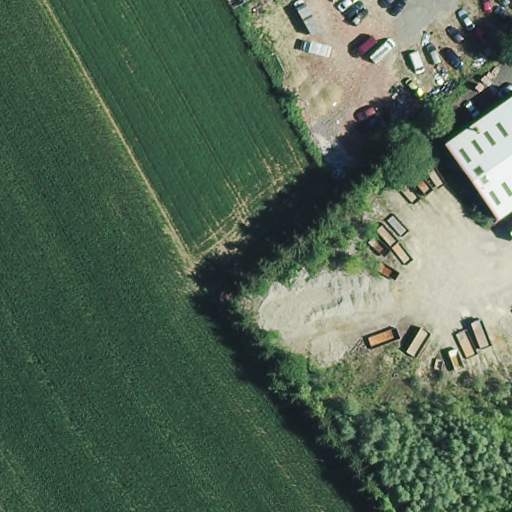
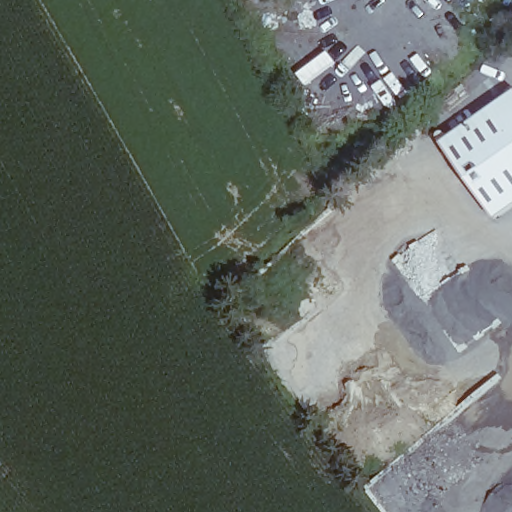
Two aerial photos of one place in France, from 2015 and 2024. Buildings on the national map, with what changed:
unchanged [(445,144),(512,97),(512,208),(497,219),(445,144)]

